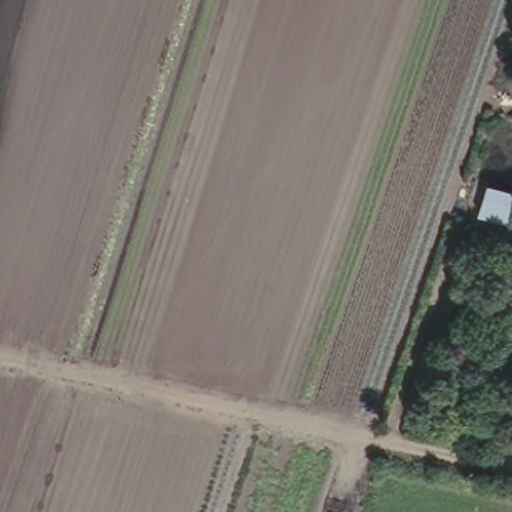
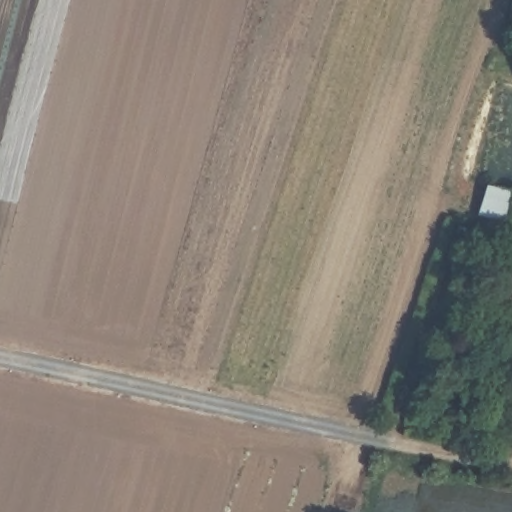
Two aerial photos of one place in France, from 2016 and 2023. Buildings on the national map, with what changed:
unchanged [(478,211),(486,178),(512,185),(512,218),(478,211)]

